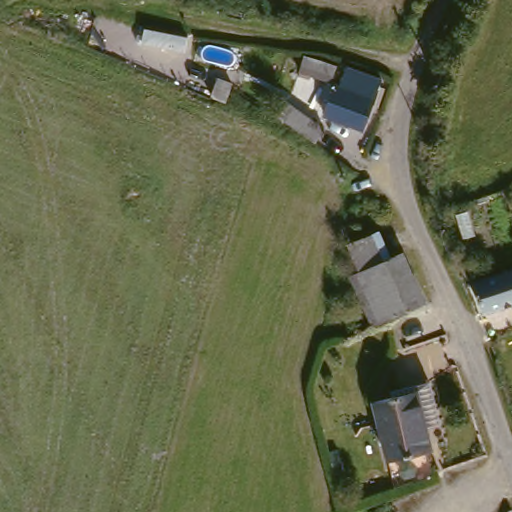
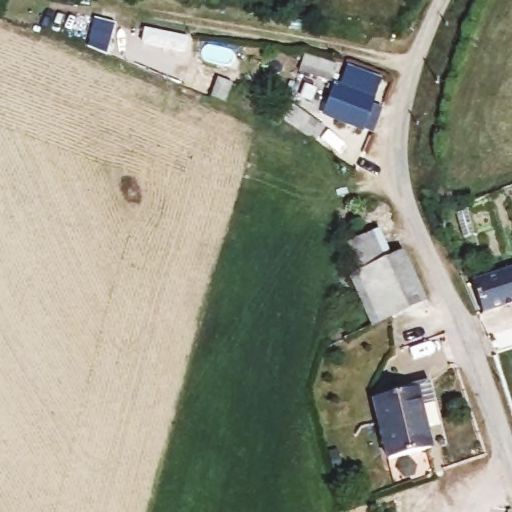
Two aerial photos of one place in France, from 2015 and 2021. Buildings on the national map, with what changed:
unchanged [(135,29),(174,36),(170,51),(132,42),(135,29)]
unchanged [(310,56),(341,65),(336,82),(304,72),(310,56)]
unchanged [(338,86),(342,88),(352,67),(383,82),(363,130),(327,115),(338,86)]
unchanged [(214,79),(227,84),(222,100),(209,96),(214,79)]
unchanged [(292,110),(323,131),(315,143),(284,122),(292,110)]
unchanged [(355,278),(341,246),(380,231),(393,261),(355,278)]
unchanged [(429,304),(376,325),(355,278),(393,261),(405,256),(429,304)]
unchanged [(512,265),(512,303),(479,313),(466,278),(512,265)]
unchanged [(386,405),(386,395),(424,387),(434,430),(422,433),(427,457),(386,465),(373,408),(386,405)]
unchanged [(511,512),(506,512),(507,510),(510,510),(511,512)]

